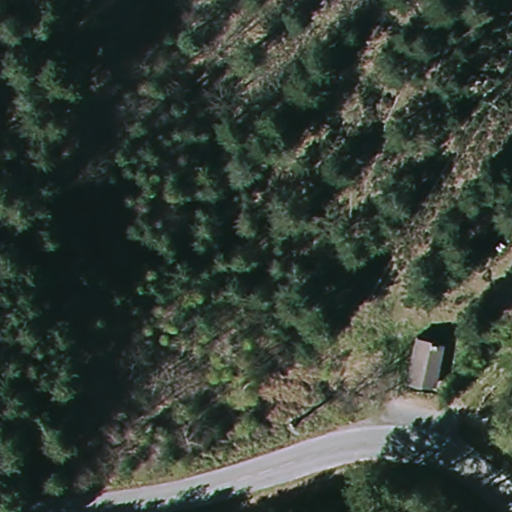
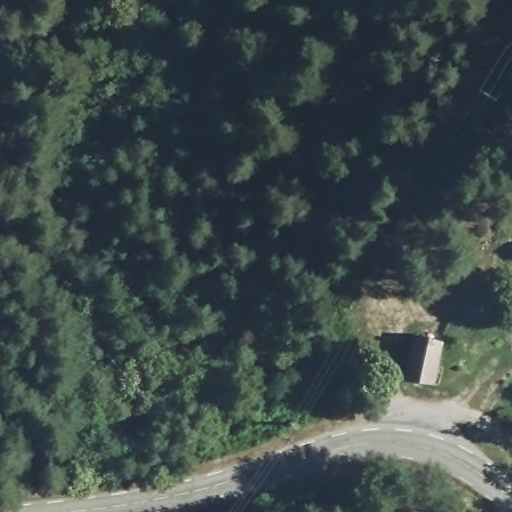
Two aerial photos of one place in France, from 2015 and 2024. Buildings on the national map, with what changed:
unchanged [(411,375),(420,330),(449,335),(441,380),(411,375)]

